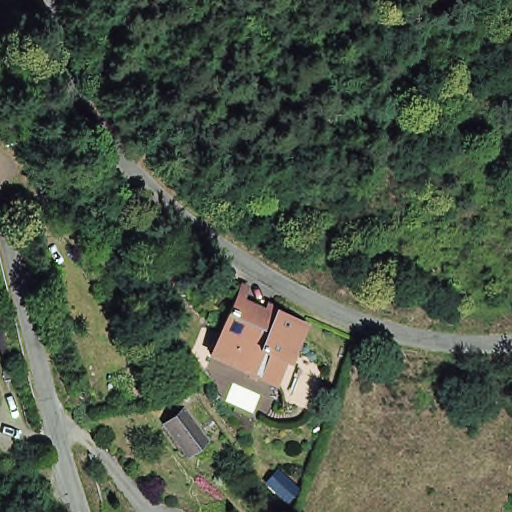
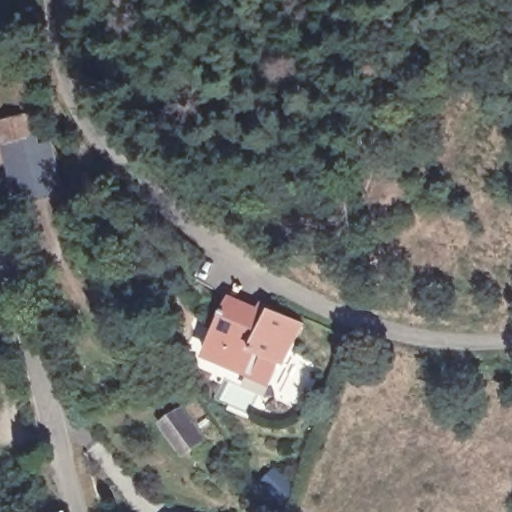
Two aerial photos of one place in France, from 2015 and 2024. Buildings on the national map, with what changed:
demolished [(0,137),(0,122),(25,115),(30,136),(2,143),(0,137)]
new [(50,140),(65,195),(18,206),(2,143),(0,137),(0,122),(25,115),(30,136),(36,135),(38,143),(50,140)]
unchanged [(205,359),(217,334),(215,331),(235,285),(243,290),(235,305),(260,316),(262,310),(302,328),(285,369),(278,367),(267,388),(242,377),(243,371),(232,367),(230,371),(205,359)]
unchanged [(198,435),(180,451),(158,423),(177,409),(198,435)]

